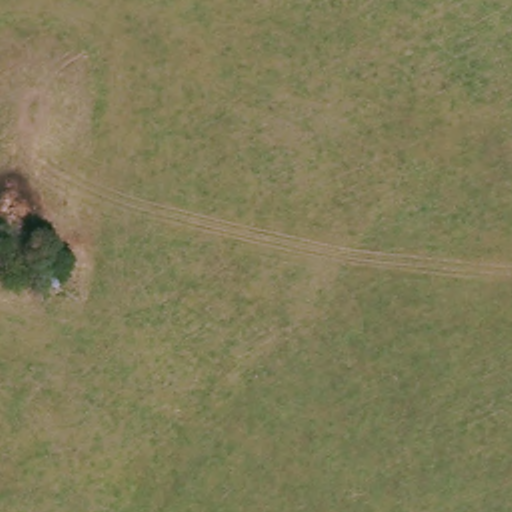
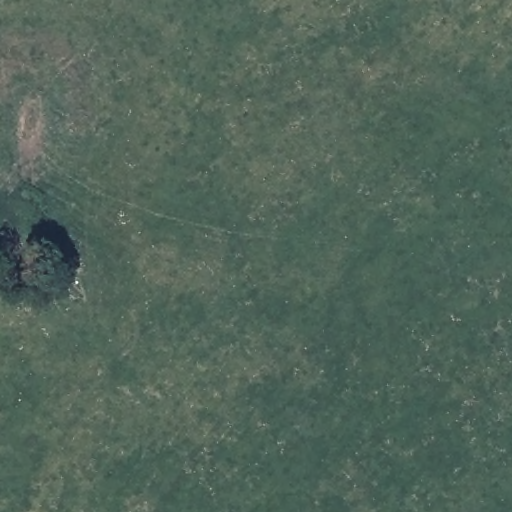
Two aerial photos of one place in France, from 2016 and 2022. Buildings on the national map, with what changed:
unchanged [(58,290),(37,280),(45,267),(65,276),(58,290)]

